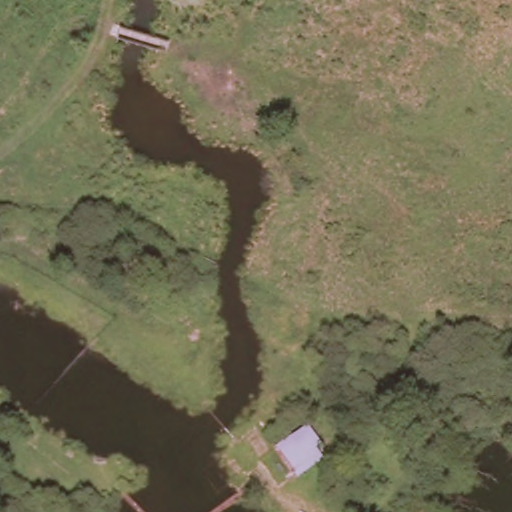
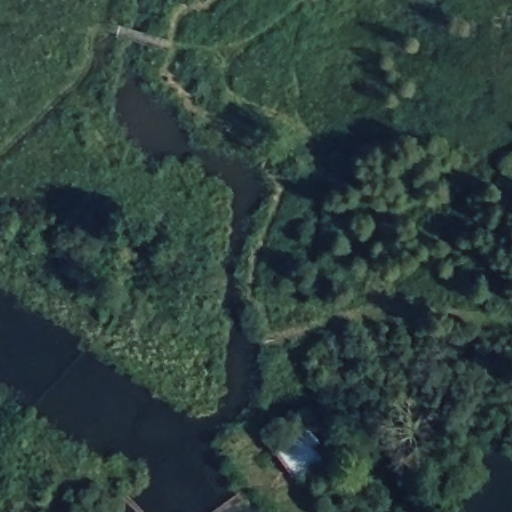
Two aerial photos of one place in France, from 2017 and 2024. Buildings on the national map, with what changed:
unchanged [(254,463),(305,426),(329,456),(297,479),(291,469),(275,482),(254,463)]

